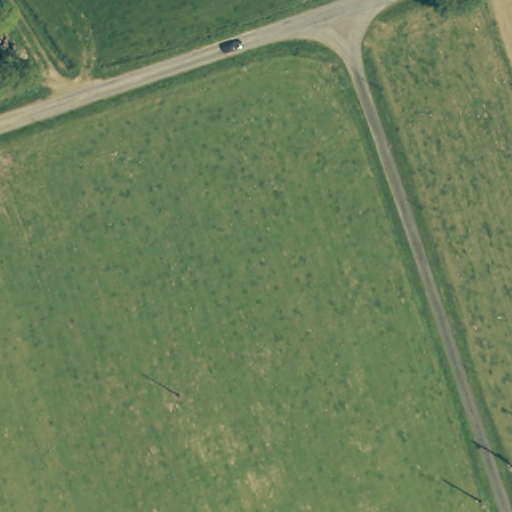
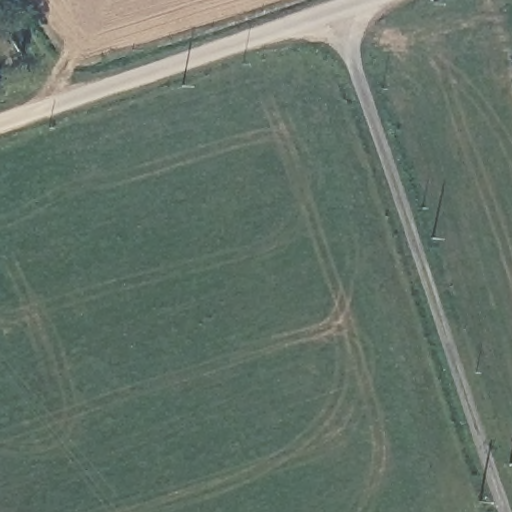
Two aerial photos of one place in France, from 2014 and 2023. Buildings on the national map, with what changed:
[]

